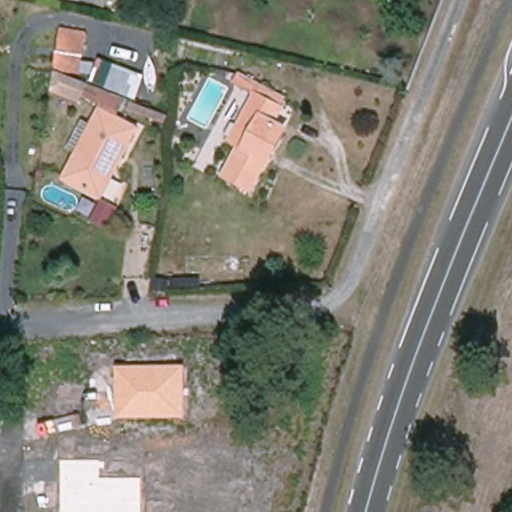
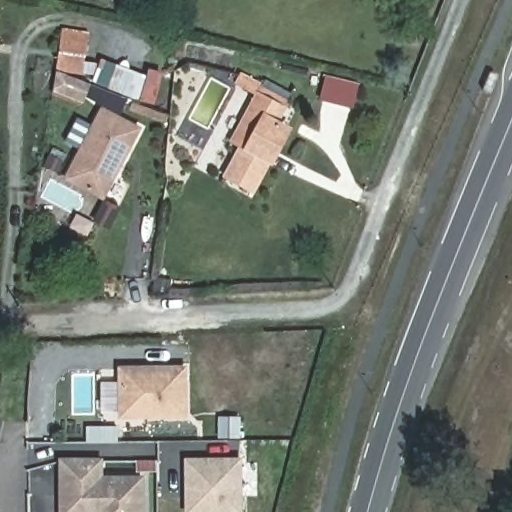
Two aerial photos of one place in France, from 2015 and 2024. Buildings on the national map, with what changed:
unchanged [(114,0),(111,8),(92,0),(114,0)]
unchanged [(85,34),(80,80),(89,85),(84,101),(51,91),(60,27),(85,34)]
new [(111,67),(141,78),(135,96),(105,85),(111,67)]
unchanged [(222,178),(239,148),(228,140),(256,91),(292,112),(253,197),(222,178)]
unchanged [(59,177),(99,104),(141,129),(102,200),(59,177)]
unchanged [(186,419),(118,419),(118,366),(190,367),(186,419)]
unchanged [(59,461),(99,460),(99,478),(140,477),(140,512),(59,512),(59,461)]
new [(242,462),(242,512),(191,512),(190,462),(242,462)]

